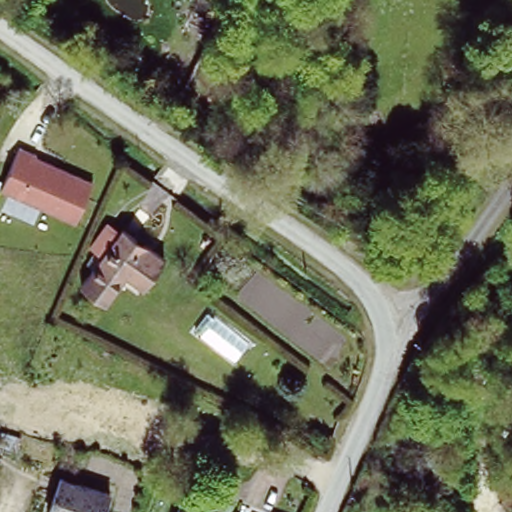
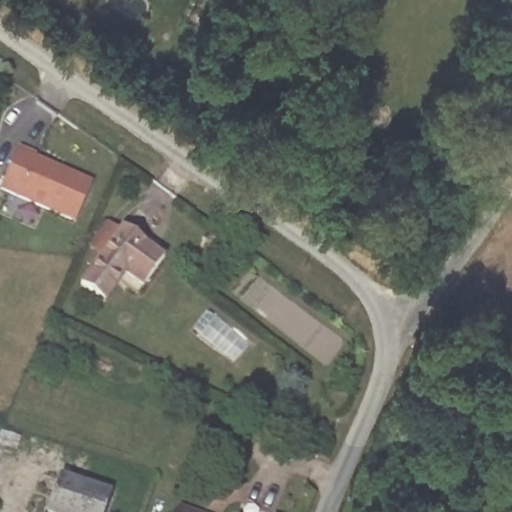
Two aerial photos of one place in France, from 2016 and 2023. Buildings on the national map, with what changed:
unchanged [(92,182),(76,222),(2,189),(19,149),(92,182)]
unchanged [(96,293),(82,282),(124,232),(127,230),(166,261),(163,265),(142,288),(124,272),(102,298),(96,293)]
unchanged [(376,467),(356,512),(346,512),(367,463),(376,467)]
unchanged [(0,470),(0,465),(2,466),(0,470)]
unchanged [(109,496),(103,512),(45,512),(57,477),(109,496)]
unchanged [(512,489),(512,503),(507,506),(502,493),(512,489)]
unchanged [(422,511),(417,497),(432,491),(437,503),(441,502),(446,512),(419,512),(422,511)]
unchanged [(471,508),(473,512),(463,512),(471,508)]
unchanged [(186,512),(183,512),(183,511),(186,512)]

